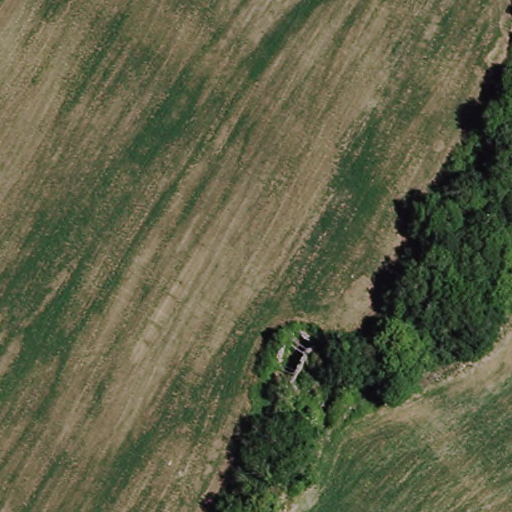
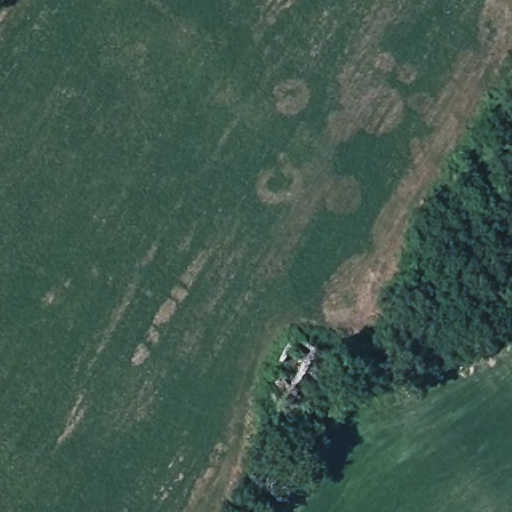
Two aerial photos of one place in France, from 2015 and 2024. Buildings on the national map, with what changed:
unchanged [(507,134),(512,125),(512,136),(507,134)]

